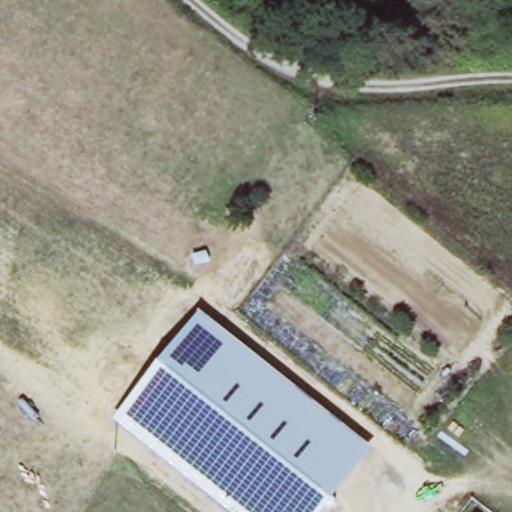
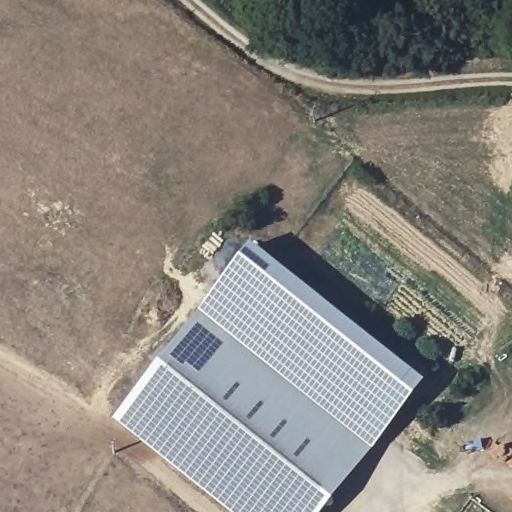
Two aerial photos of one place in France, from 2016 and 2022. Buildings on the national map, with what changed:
new [(199,312),(251,248),(424,384),(372,452),(199,312)]
unchanged [(372,452),(325,512),(226,512),(112,424),(199,312),(372,452)]

